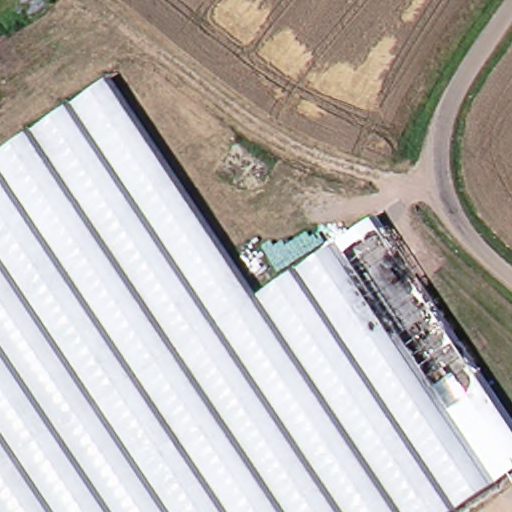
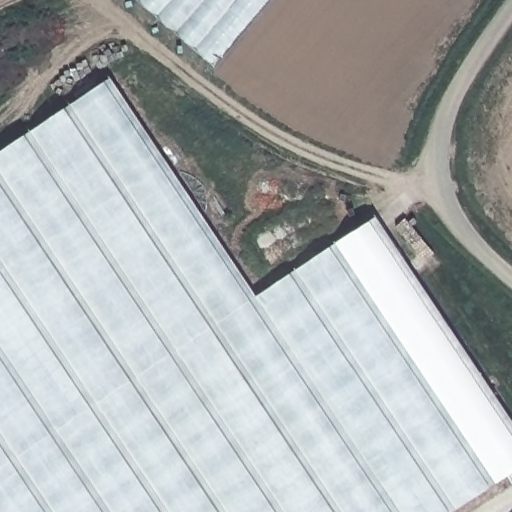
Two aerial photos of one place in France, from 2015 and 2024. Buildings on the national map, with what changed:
new [(131,0),(269,0),(210,68),(131,0)]
unchanged [(261,297),(381,220),(512,418),(512,475),(457,512),(0,512),(0,155),(115,79),(261,297)]

